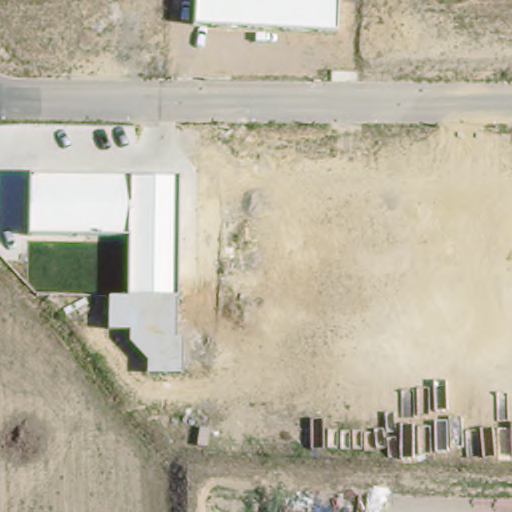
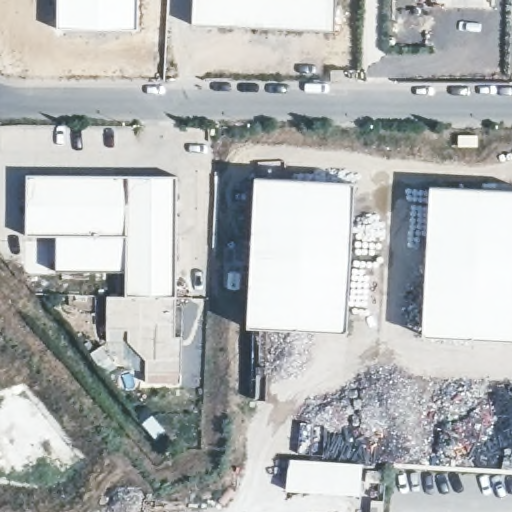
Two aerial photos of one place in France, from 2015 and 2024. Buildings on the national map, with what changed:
new [(56,30),(57,0),(138,0),(137,32),(56,30)]
unchanged [(192,27),(194,0),(337,0),(335,34),(192,27)]
unchanged [(177,177),(177,297),(174,297),(174,337),(180,337),(180,374),(148,375),(147,360),(130,340),(130,330),(108,332),(109,295),(126,296),(126,237),(27,237),(27,175),(177,177)]
new [(345,332),(247,329),(255,179),(355,185),(345,332)]
new [(422,337),(430,187),(512,192),(512,341),(422,337)]
new [(126,237),(126,271),(55,271),(57,237),(126,237)]
new [(289,460),(361,465),(360,496),(287,491),(289,460)]

